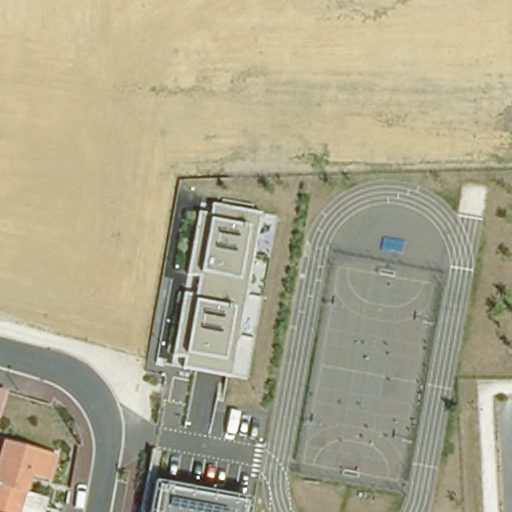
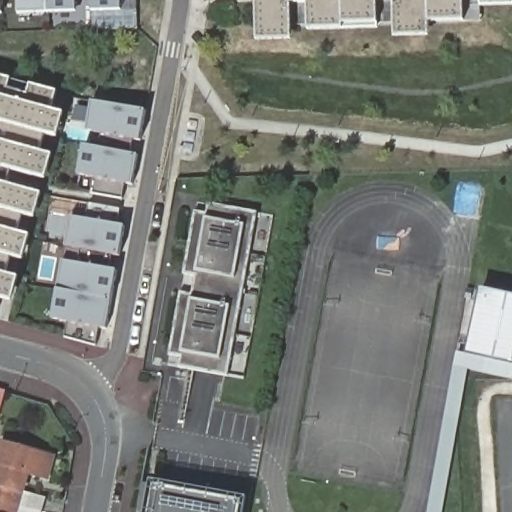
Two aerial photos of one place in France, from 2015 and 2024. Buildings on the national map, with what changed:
new [(4,14),(0,14),(0,0),(4,0),(4,14)]
new [(78,12),(19,14),(19,0),(78,0),(78,12)]
new [(121,12),(91,13),(91,0),(121,0),(121,12)]
new [(465,22),(429,23),(430,37),(395,38),(394,1),(378,1),(379,30),(309,31),(307,4),(292,5),(293,41),(259,42),(259,0),(465,0),(465,22)]
new [(480,0),(512,0),(512,5),(480,6),(480,0)]
new [(59,92),(55,112),(66,115),(59,139),(49,136),(44,152),(54,156),(48,181),(17,172),(13,187),(44,195),(37,220),(27,217),(22,234),(31,236),(25,261),(14,257),(9,275),(20,278),(13,303),(1,300),(0,303),(0,75),(59,92)]
new [(141,142),(137,141),(134,155),(140,156),(135,186),(127,184),(125,199),(92,192),(95,179),(78,175),(84,145),(102,148),(104,135),(87,131),(93,101),(147,111),(141,142)]
unchanged [(229,377),(183,371),(185,359),(171,357),(182,295),(193,296),(198,274),(183,273),(195,214),(206,215),(209,204),(259,212),(229,377)]
new [(121,226),(125,227),(120,257),(115,256),(113,270),(118,271),(108,330),(100,329),(98,345),(68,338),(71,322),(52,318),(63,261),(82,264),(84,251),(65,247),(72,216),(87,219),(90,205),(122,210),(121,226)]
new [(458,354),(468,356),(482,291),(512,297),(512,380),(455,367),(458,354)]
unchanged [(0,399),(0,390),(2,391),(0,399)]
unchanged [(2,442),(53,457),(46,481),(28,476),(24,493),(46,498),(42,512),(38,512),(0,501),(0,450),(2,442)]
unchanged [(145,482),(244,502),(242,512),(140,512),(139,512),(145,482)]
unchanged [(0,512),(0,501),(38,512),(0,512)]

